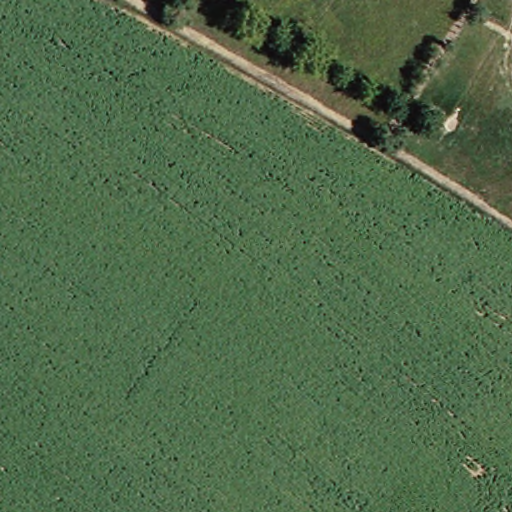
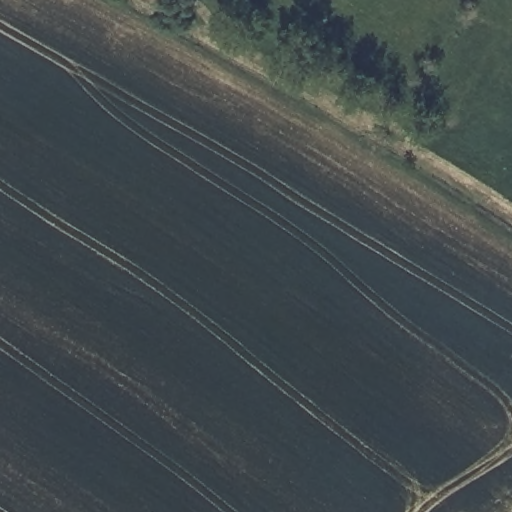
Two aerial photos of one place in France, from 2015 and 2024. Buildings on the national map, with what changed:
[]

